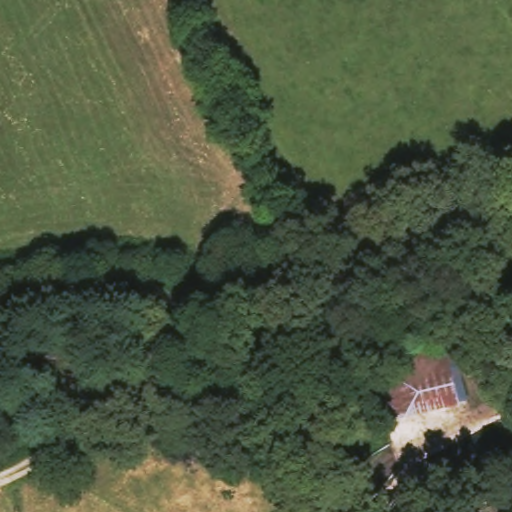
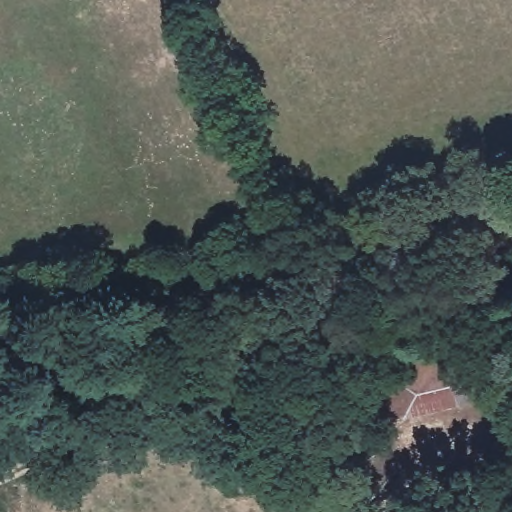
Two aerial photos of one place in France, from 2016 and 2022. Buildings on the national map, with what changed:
unchanged [(452,344),(468,395),(383,419),(373,368),(452,344)]

